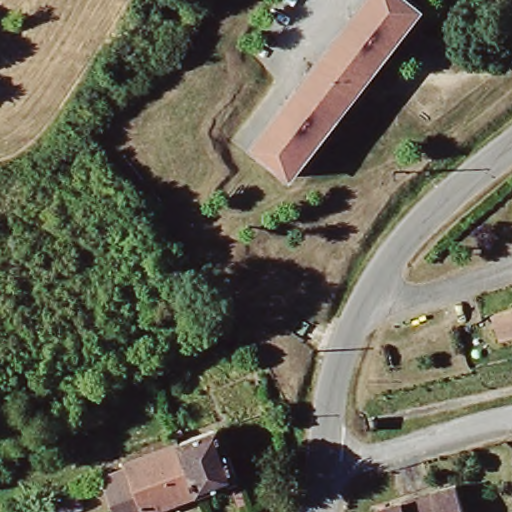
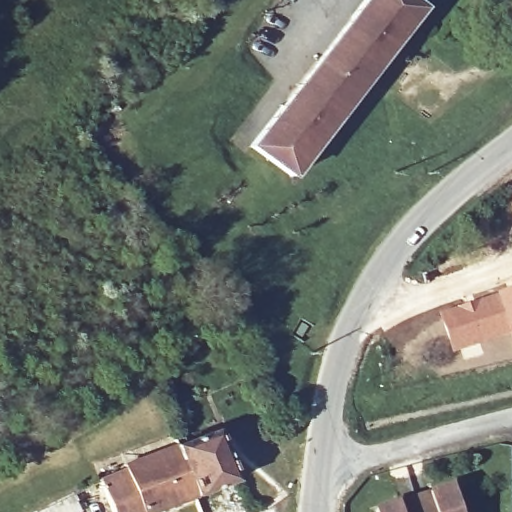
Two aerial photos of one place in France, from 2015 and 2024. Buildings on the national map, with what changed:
unchanged [(420,11),(290,179),(250,149),(367,0),(406,0),(420,11)]
new [(512,212),(507,211),(512,189),(512,212)]
new [(512,339),(510,335),(496,294),(512,290),(512,339)]
new [(496,294),(510,335),(453,354),(440,312),(496,294)]
demolished [(492,318),(512,312),(512,339),(500,343),(492,318)]
unchanged [(221,434),(240,484),(200,499),(181,449),(221,434)]
unchanged [(168,512),(115,512),(104,483),(130,473),(129,470),(181,449),(200,499),(168,512)]
unchanged [(100,507),(90,512),(50,512),(50,511),(91,490),(100,507)]
unchanged [(461,512),(385,512),(454,490),(461,512)]

